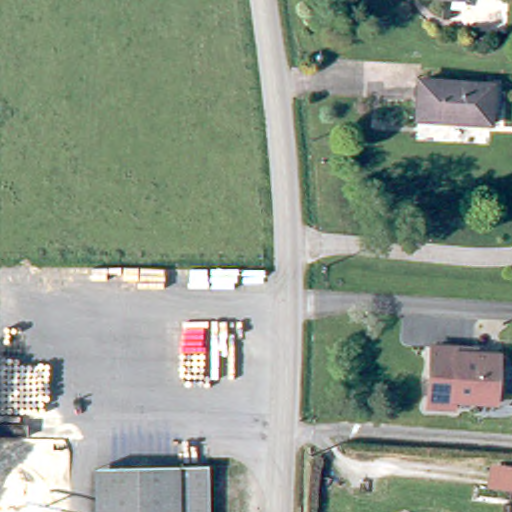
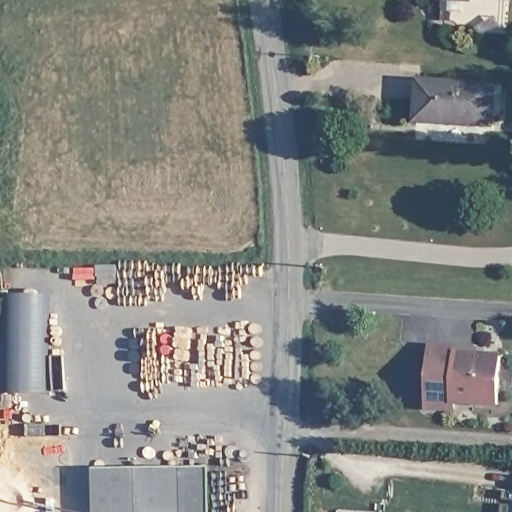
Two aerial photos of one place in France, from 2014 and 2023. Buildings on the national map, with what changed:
unchanged [(417,119),(418,80),(494,85),(502,85),(502,112),(492,111),(492,124),(417,119)]
new [(49,393),(0,393),(0,294),(50,294),(49,393)]
unchanged [(434,343),(477,346),(477,351),(501,353),(497,406),(455,401),(450,410),(428,410),(434,343)]
unchanged [(213,512),(98,512),(98,496),(97,466),(211,466),(213,505),(213,512)]

